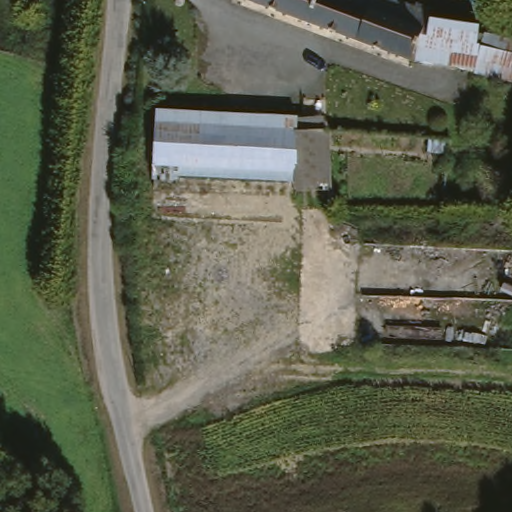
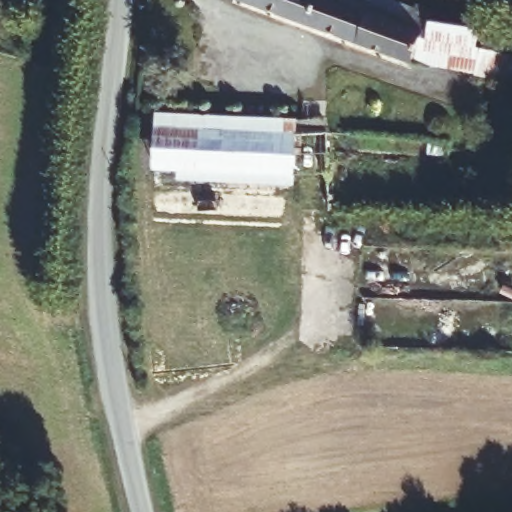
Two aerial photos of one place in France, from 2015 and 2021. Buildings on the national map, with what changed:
unchanged [(327,0),(318,30),(244,2),(245,0),(327,0)]
unchanged [(385,0),(422,13),(423,9),(440,14),(437,25),(419,67),(416,67),(318,30),(327,0),(385,0)]
unchanged [(437,25),(486,32),(481,75),(481,77),(419,67),(437,25)]
unchanged [(512,79),(481,75),(486,32),(512,35),(512,79)]
unchanged [(300,119),(300,210),(163,184),(161,113),(300,119)]
unchanged [(328,210),(300,210),(300,119),(326,119),(328,210)]

